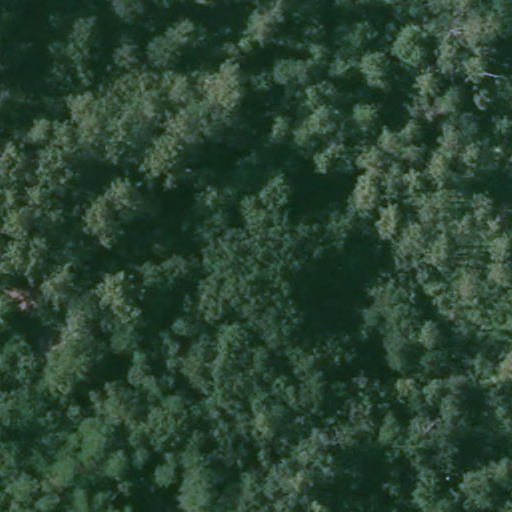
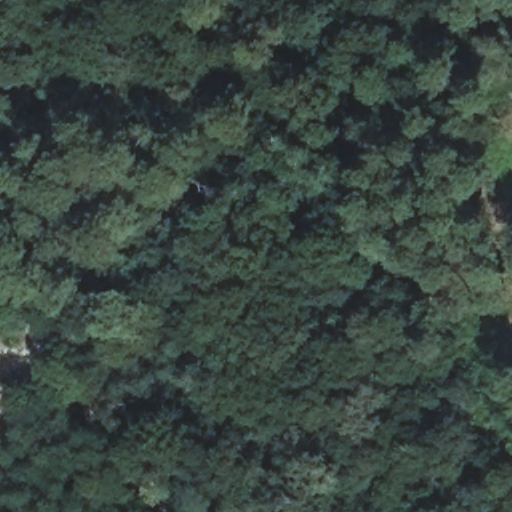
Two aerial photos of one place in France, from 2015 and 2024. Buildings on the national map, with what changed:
[]

